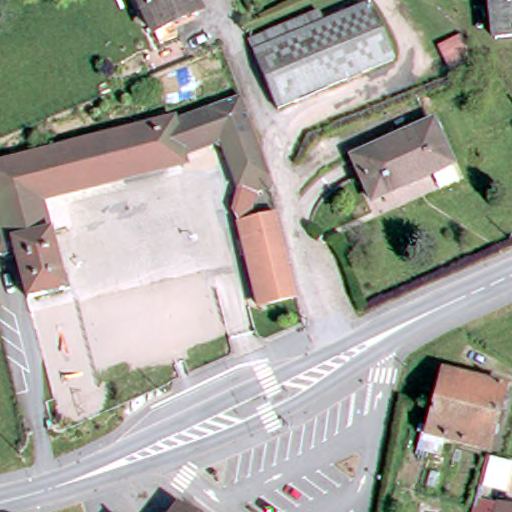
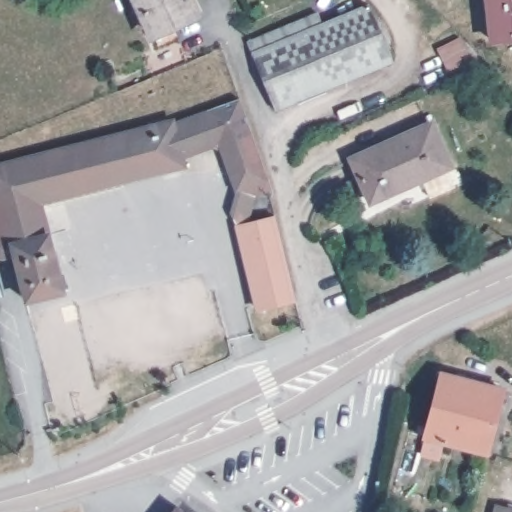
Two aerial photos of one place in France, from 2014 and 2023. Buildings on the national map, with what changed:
unchanged [(148,37),(133,0),(184,0),(192,21),(148,37)]
unchanged [(253,53),(247,37),(342,0),(367,0),(370,9),(253,53)]
unchanged [(486,0),(512,0),(512,38),(490,41),(486,0)]
unchanged [(395,65),(277,111),(253,53),(370,9),(395,65)]
unchanged [(455,42),(463,65),(442,74),(432,51),(455,42)]
unchanged [(250,191),(225,185),(217,151),(208,143),(178,154),(181,165),(40,205),(63,296),(26,305),(17,258),(0,261),(0,168),(169,120),(170,124),(208,110),(207,104),(237,93),(258,150),(258,152),(267,188),(250,191)]
unchanged [(429,126),(448,167),(369,201),(350,160),(429,126)]
unchanged [(260,323),(237,231),(275,222),(298,313),(260,323)]
unchanged [(423,425),(433,426),(446,373),(510,390),(492,453),(430,436),(422,434),(423,425)]
unchanged [(512,510),(512,512),(495,512),(497,506),(512,510)]
unchanged [(182,508),(188,512),(180,512),(182,508)]

